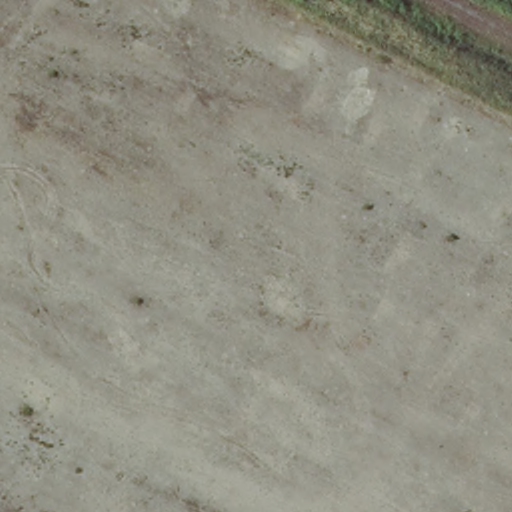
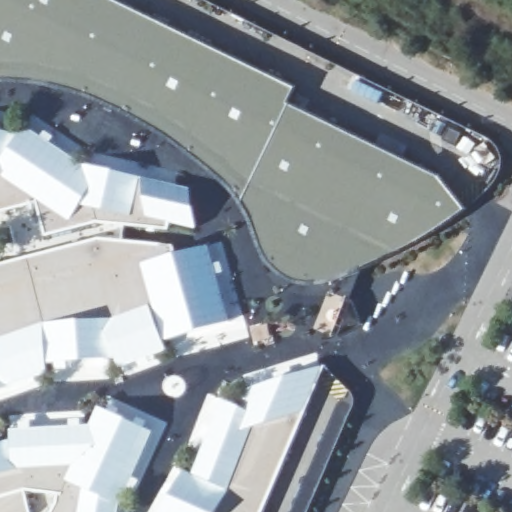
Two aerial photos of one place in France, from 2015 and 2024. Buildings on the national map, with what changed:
new [(294,87),(286,105),(441,177),(468,211),(368,267),(335,277),(313,282),(296,282),(278,275),(266,261),(251,228),(240,202),(225,182),(184,148),(126,111),(73,90),(27,81),(0,81),(0,0),(113,0),(294,87)]
new [(25,126),(83,164),(193,190),(196,227),(170,222),(169,229),(99,222),(45,236),(37,203),(0,213),(0,130),(20,135),(25,126)]
new [(173,246),(177,254),(208,245),(229,322),(165,341),(168,352),(120,368),(117,358),(48,362),(47,375),(8,385),(9,388),(0,391),(0,264),(98,238),(173,246)]
new [(328,289),(349,296),(334,338),(311,330),(328,289)]
new [(268,321),(274,343),(254,349),(245,327),(268,321)]
new [(194,472),(221,398),(241,405),(248,387),(326,365),(262,512),(161,512),(184,468),(194,472)]
new [(10,429),(90,423),(99,407),(152,431),(119,503),(118,512),(53,512),(58,503),(58,493),(26,489),(0,496),(0,441),(11,437),(10,429)]

